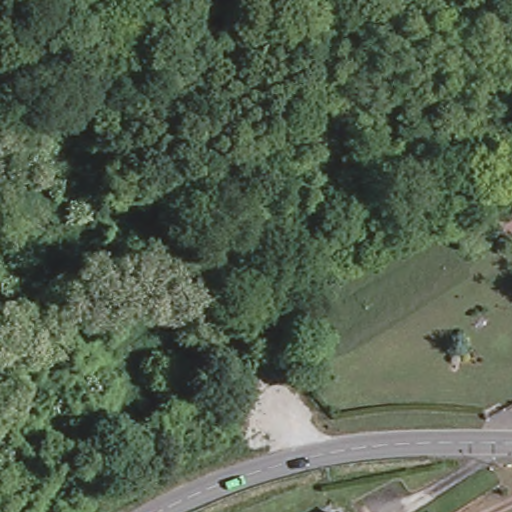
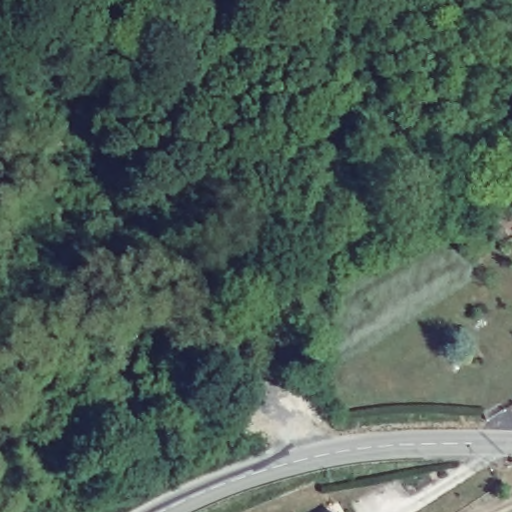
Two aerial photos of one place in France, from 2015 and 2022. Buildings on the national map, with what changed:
unchanged [(335,512),(314,512),(328,502),(335,512)]

